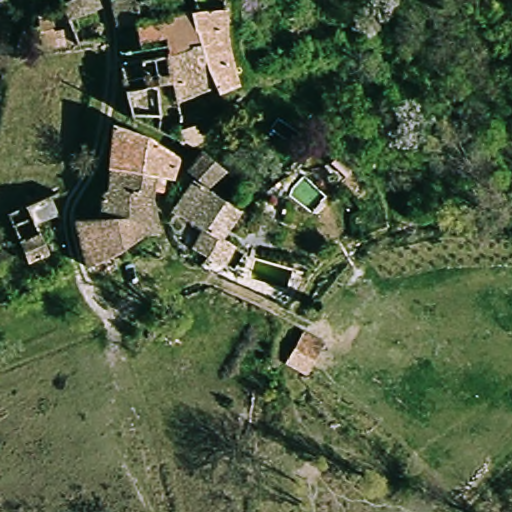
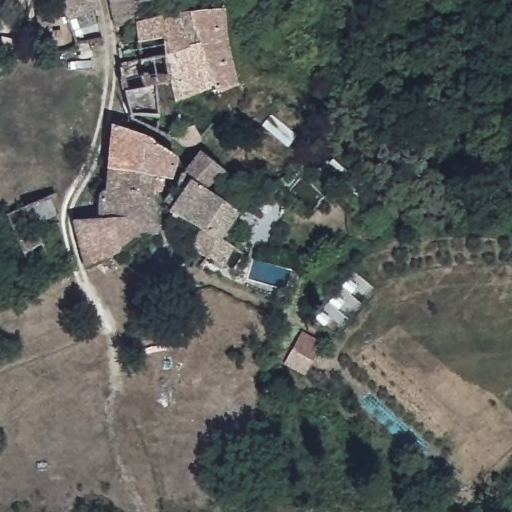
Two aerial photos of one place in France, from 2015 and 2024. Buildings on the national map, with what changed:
unchanged [(86,10),(63,20),(58,2),(61,0),(93,0),(95,6),(86,10)]
unchanged [(168,83),(163,55),(159,40),(138,45),(137,39),(115,43),(106,3),(119,0),(129,0),(135,28),(218,12),(233,90),(214,97),(210,89),(199,93),(172,100),(168,83)]
unchanged [(151,177),(106,169),(110,124),(150,140),(152,142),(163,149),(172,157),(176,161),(168,179),(159,178),(151,177)]
unchanged [(199,139),(193,145),(183,148),(179,146),(176,143),(176,129),(191,124),(199,139)]
unchanged [(203,187),(183,171),(199,152),(221,170),(203,187)]
unchanged [(151,177),(149,199),(104,191),(106,169),(151,177)]
unchanged [(171,208),(174,204),(164,199),(171,188),(181,194),(190,180),(201,189),(236,211),(218,238),(231,247),(222,267),(208,258),(206,259),(203,258),(191,250),(200,230),(168,213),(171,208)]
unchanged [(149,199),(158,234),(143,235),(141,237),(131,219),(98,219),(99,192),(104,191),(149,199)]
unchanged [(131,219),(141,237),(109,257),(85,269),(78,245),(71,219),(98,219),(131,219)]

